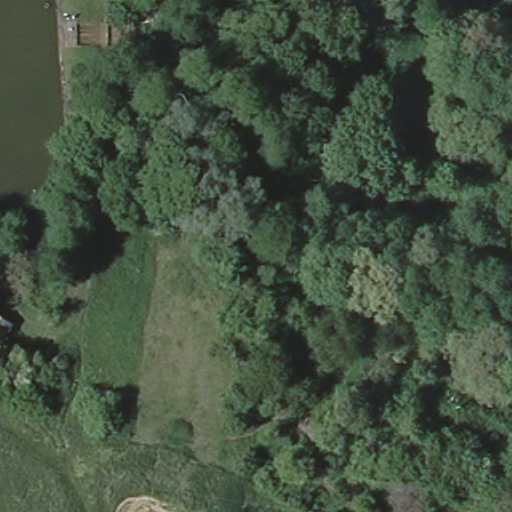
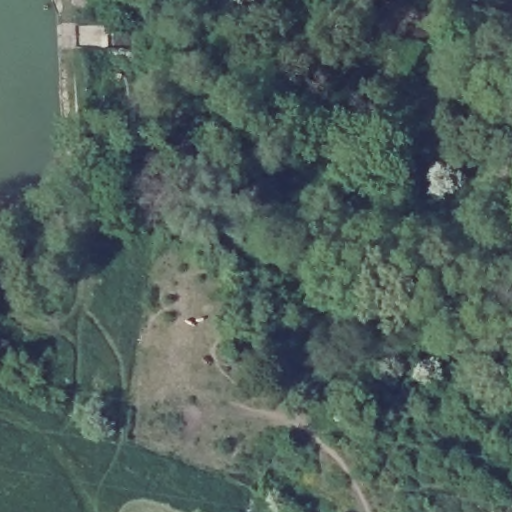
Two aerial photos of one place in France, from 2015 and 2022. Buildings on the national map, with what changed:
[]

